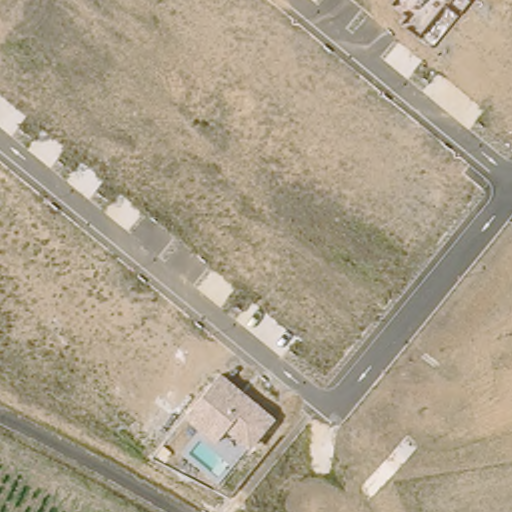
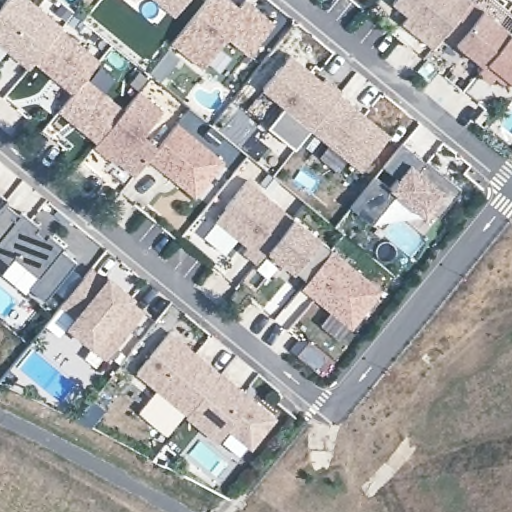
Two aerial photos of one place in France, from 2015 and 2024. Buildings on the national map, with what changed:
new [(6,0),(30,0),(63,26),(35,59),(30,64),(0,40),(0,7),(6,0)]
new [(174,17),(153,0),(187,0),(174,17)]
new [(222,0),(230,0),(249,15),(255,7),(284,31),(258,62),(237,44),(212,75),(181,50),(222,0)]
unchanged [(432,44),(420,34),(401,20),(407,12),(394,2),(395,0),(471,0),(432,44)]
new [(511,32),(512,33),(512,82),(512,81),(507,87),(495,78),(490,83),(478,72),(484,64),(456,42),(443,32),(471,0),(473,0),(485,10),(511,32)]
new [(74,91),(35,59),(63,26),(101,58),(87,75),(74,91)]
new [(293,54),(316,73),(310,80),(320,88),(328,78),(345,91),(341,96),(313,130),(297,149),(270,126),(286,107),(265,89),(293,54)]
new [(125,107),(98,140),(59,108),(74,91),(87,75),(125,107)]
new [(98,140),(125,107),(141,90),(165,110),(145,134),(159,146),(150,157),(136,174),(114,156),(112,158),(95,144),(98,140)]
new [(390,137),(363,171),(313,130),(341,96),(390,137)]
new [(159,146),(179,123),(226,161),(197,196),(180,182),(183,179),(177,174),(174,177),(150,157),(159,146)]
new [(379,176),(393,188),(402,178),(387,166),(405,143),(429,163),(430,161),(465,190),(443,218),(435,211),(430,217),(400,193),(375,223),(354,206),(379,176)]
new [(250,179),(297,217),(259,262),(245,251),(250,245),(217,219),(250,179)]
new [(20,213),(23,210),(40,225),(50,232),(66,245),(63,248),(78,261),(46,299),(30,286),(39,275),(15,256),(10,262),(0,254),(0,208),(6,201),(20,213)]
new [(298,222),(336,255),(311,285),(272,253),(298,222)]
new [(311,285),(336,255),(385,296),(355,332),(336,316),(337,314),(321,300),(319,302),(306,292),(311,285)]
new [(92,267),(106,279),(109,275),(134,295),(131,299),(145,311),(108,356),(69,324),(77,315),(62,303),(92,267)]
new [(62,303),(77,315),(69,324),(108,356),(98,367),(45,323),(62,303)]
new [(187,414),(138,375),(172,332),(222,373),(187,414)]
unchanged [(251,449),(227,430),(216,442),(185,416),(222,373),(279,418),(251,449)]

